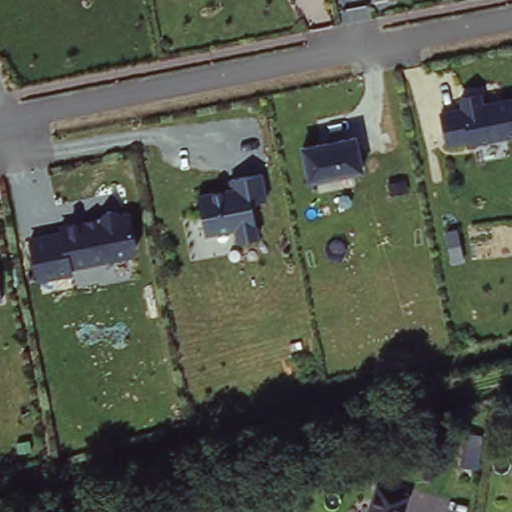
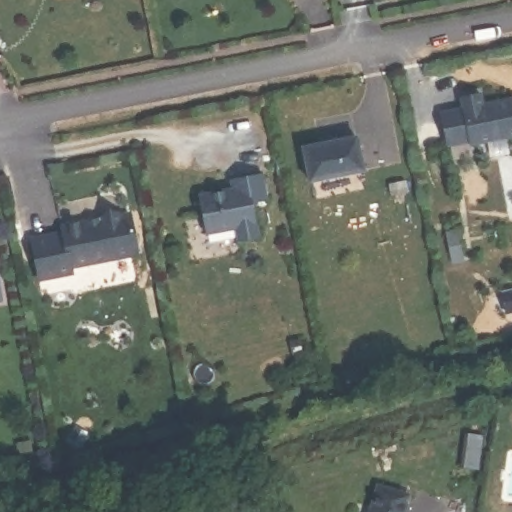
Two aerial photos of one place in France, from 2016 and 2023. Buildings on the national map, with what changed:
unchanged [(447,150),(440,115),(461,110),(458,100),(487,94),(489,105),(512,100),(512,135),(447,150)]
unchanged [(308,182),(302,148),(355,136),(362,168),(308,182)]
unchanged [(268,202),(254,206),(258,237),(236,242),(234,230),(205,236),(199,197),(228,190),(226,180),(262,173),(268,202)]
unchanged [(135,254),(73,268),(74,275),(36,282),(29,241),(52,237),(51,228),(130,211),(135,254)]
unchanged [(0,296),(0,293),(1,296),(0,296)]
unchanged [(400,512),(366,512),(378,484),(407,495),(400,512)]

